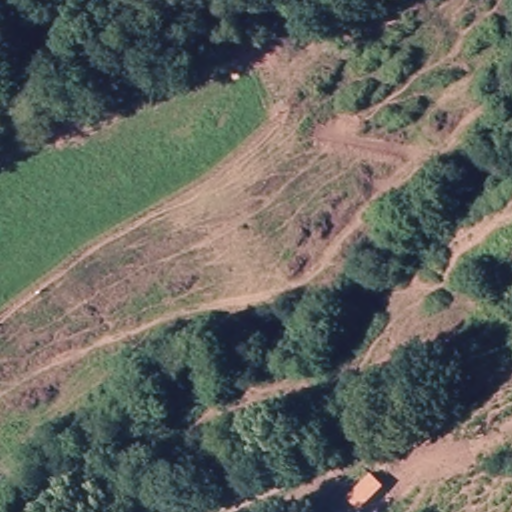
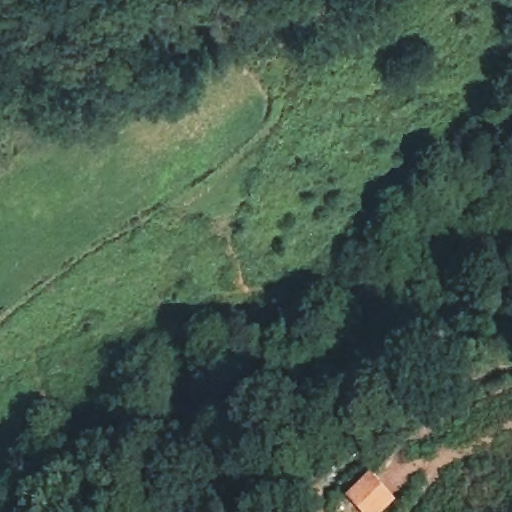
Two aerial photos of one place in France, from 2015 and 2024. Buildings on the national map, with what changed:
unchanged [(361,504),(385,482),(396,493),(376,512),(369,512),(361,504)]

